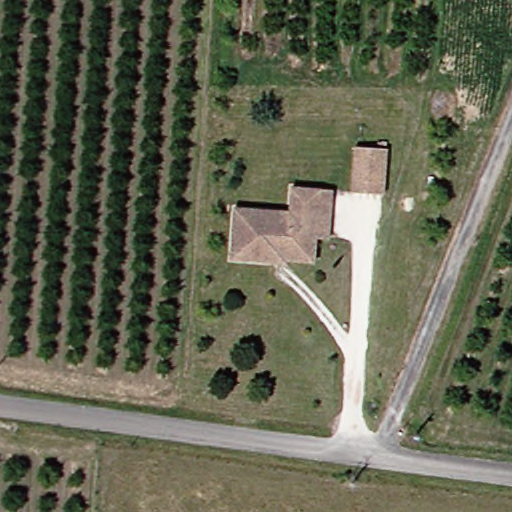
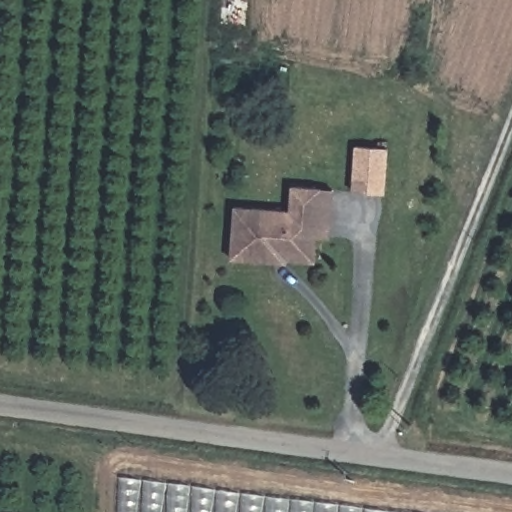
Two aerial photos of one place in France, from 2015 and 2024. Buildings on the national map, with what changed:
unchanged [(379,150),(375,195),(344,193),(347,148),(379,150)]
unchanged [(270,260),(270,263),(225,259),(229,207),(285,212),(287,188),(317,190),(329,191),(325,239),(313,238),(311,256),(310,263),(270,260)]
new [(409,512),(120,512),(122,476),(409,512)]

